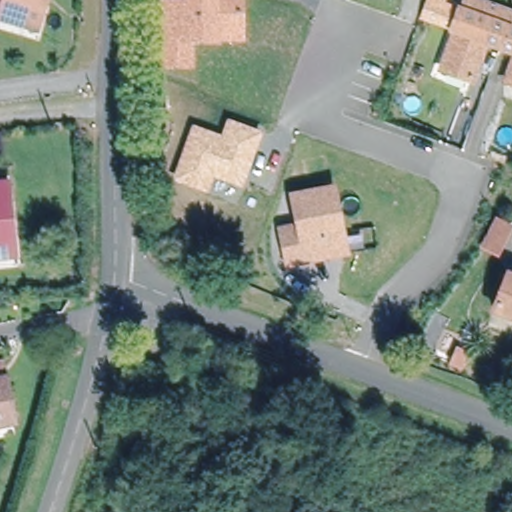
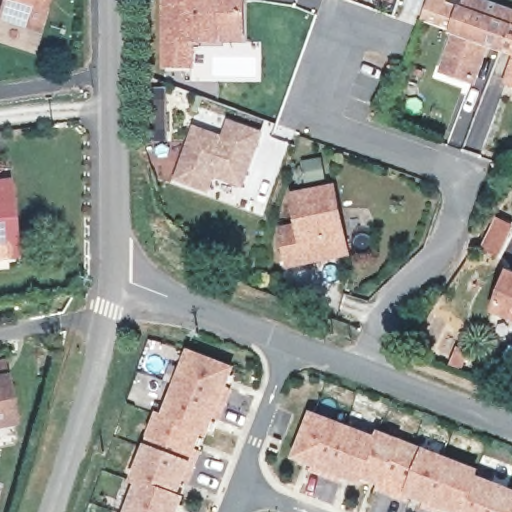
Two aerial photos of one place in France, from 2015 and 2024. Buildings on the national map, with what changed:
unchanged [(3,13),(7,0),(49,0),(41,25),(3,13)]
unchanged [(230,29),(230,36),(205,36),(205,66),(179,66),(179,4),(202,4),(202,0),(230,0),(230,1),(255,1),(255,29),(230,29)]
unchanged [(455,30),(454,34),(418,21),(426,0),(447,0),(446,2),(461,8),(453,30),(455,30)]
unchanged [(512,52),(486,42),(472,80),(441,68),(455,30),(453,30),(461,8),(463,9),(467,0),(490,0),(512,8),(512,52)]
unchanged [(512,65),(512,84),(506,81),(512,65)]
unchanged [(227,119),(262,131),(242,186),(215,177),(207,193),(174,180),(193,124),(222,135),(227,119)]
unchanged [(0,258),(0,182),(11,181),(14,203),(20,256),(0,258)]
unchanged [(315,261),(297,265),(290,229),(307,225),(301,196),(340,188),(350,237),(353,254),(315,261)]
unchanged [(512,276),(512,310),(500,306),(512,276)]
new [(235,366),(227,387),(232,388),(220,422),(215,418),(206,438),(201,435),(195,448),(202,453),(191,484),(185,481),(182,495),(186,496),(179,512),(124,512),(134,485),(129,482),(156,411),(162,414),(187,348),(235,366)]
unchanged [(7,421),(0,422),(0,376),(7,421)]
new [(377,428),(423,447),(480,469),(477,474),(512,488),(512,512),(453,512),(439,508),(438,512),(433,512),(423,509),(425,504),(411,498),(408,503),(380,491),(382,486),(365,480),(362,485),(345,478),(340,485),(310,473),(314,467),(291,459),(310,409),(373,435),(377,428)]

